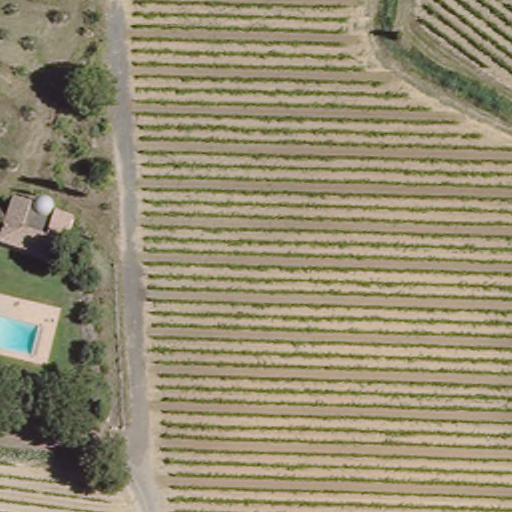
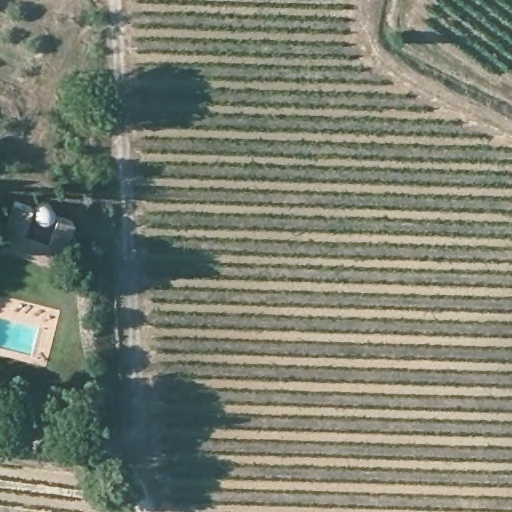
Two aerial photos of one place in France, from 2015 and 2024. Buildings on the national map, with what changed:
unchanged [(7,251),(10,234),(20,204),(40,210),(50,206),(58,209),(62,214),(63,220),(75,225),(67,254),(62,269),(7,251)]

